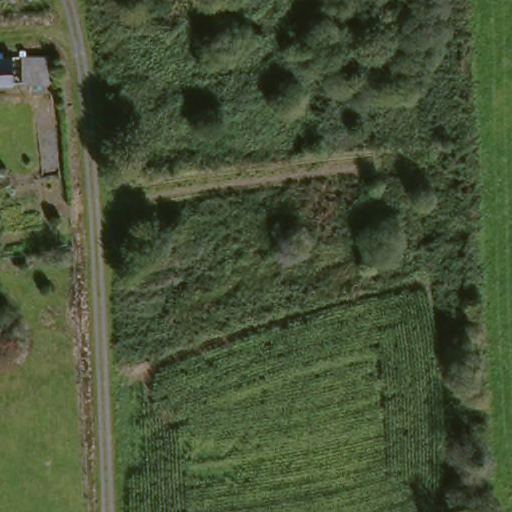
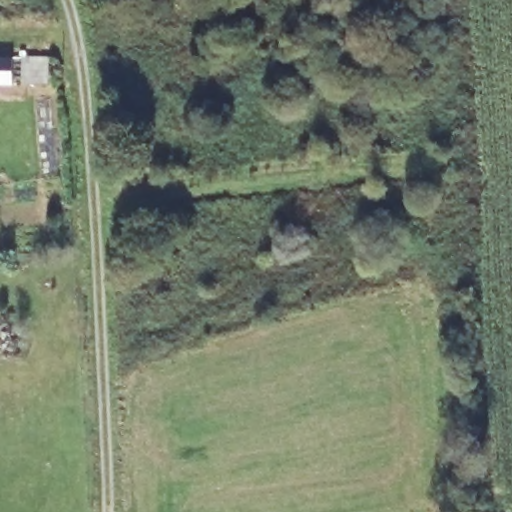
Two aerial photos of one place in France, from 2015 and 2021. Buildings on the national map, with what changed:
unchanged [(10,58),(11,84),(0,85),(0,58),(10,58)]

